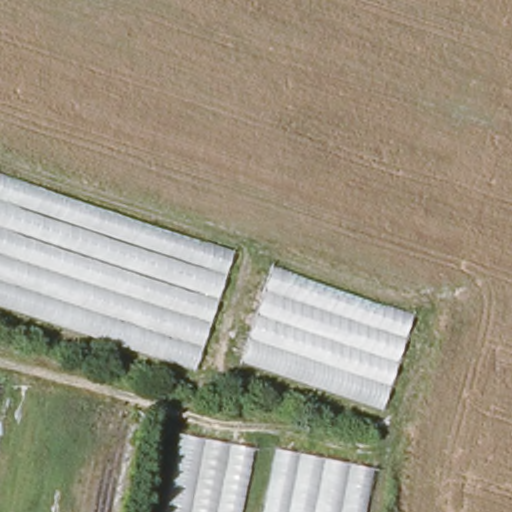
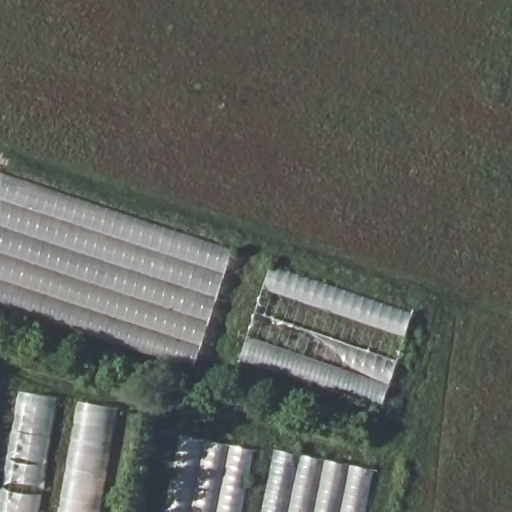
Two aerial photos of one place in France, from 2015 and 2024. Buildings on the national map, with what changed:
unchanged [(0,306),(0,173),(232,250),(194,369),(0,306)]
unchanged [(269,264),(413,314),(380,409),(239,362),(269,264)]
new [(36,512),(0,512),(0,500),(19,392),(55,399),(36,512)]
new [(78,402),(116,409),(98,512),(59,512),(78,402)]
unchanged [(180,435),(255,450),(243,512),(164,512),(180,435)]
unchanged [(274,451),(376,470),(367,512),(262,512),(274,451)]

